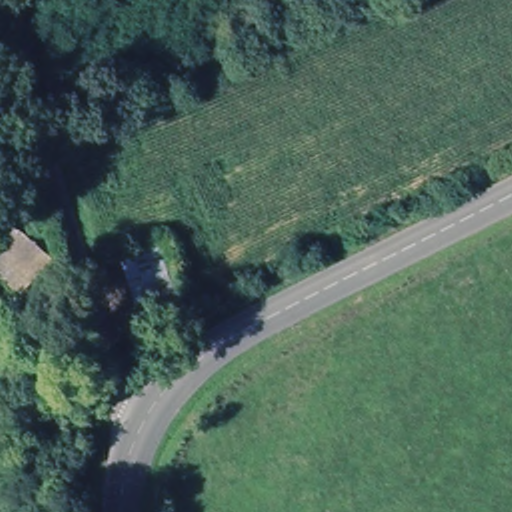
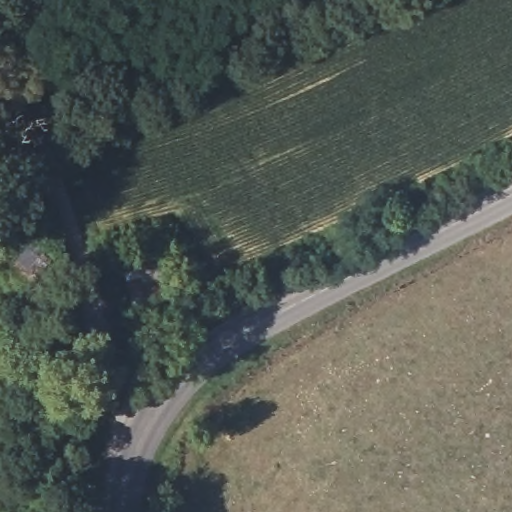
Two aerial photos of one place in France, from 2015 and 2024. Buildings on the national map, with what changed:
unchanged [(0,263),(0,248),(15,230),(51,262),(26,292),(0,263)]
unchanged [(162,247),(175,305),(136,316),(122,261),(162,247)]

